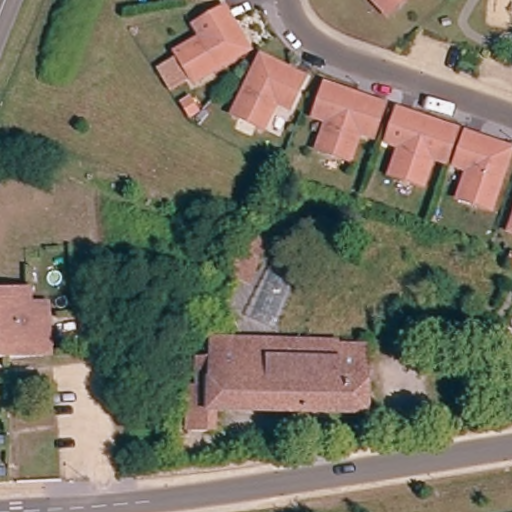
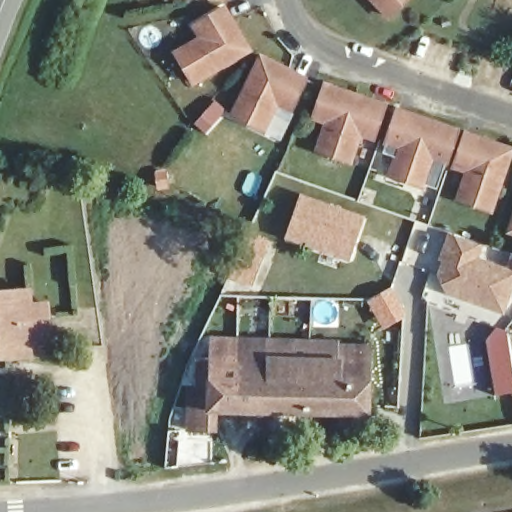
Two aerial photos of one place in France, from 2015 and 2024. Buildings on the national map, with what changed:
unchanged [(218,5),(182,0),(219,0),(218,5)]
unchanged [(383,15),(369,0),(400,0),(383,15)]
unchanged [(188,86),(171,57),(197,42),(188,27),(214,13),(240,57),(188,86)]
unchanged [(303,87),(291,113),(274,108),(260,136),(233,124),(258,67),(303,87)]
unchanged [(370,107),(359,136),(346,136),(338,160),(309,148),(318,123),(304,117),(314,86),(370,107)]
unchanged [(451,130),(440,162),(425,156),(414,182),(386,170),(396,145),(380,140),(392,107),(451,130)]
unchanged [(457,198),(465,171),(452,167),(462,135),(510,152),(490,211),(457,198)]
new [(284,240),(301,195),(366,217),(349,262),(284,240)]
unchanged [(512,226),(512,234),(509,233),(512,226)]
new [(480,257),(507,266),(512,255),(512,292),(505,313),(446,294),(437,274),(442,261),(438,259),(448,231),(484,243),(480,257)]
unchanged [(239,249),(242,243),(258,251),(247,274),(240,288),(223,281),(230,267),(239,249)]
unchanged [(25,293),(28,312),(41,313),(42,324),(44,363),(0,365),(0,294),(25,293)]
new [(507,327),(512,358),(512,393),(495,396),(486,342),(497,327),(507,327)]
demolished [(512,331),(512,369),(493,373),(487,335),(512,331)]
unchanged [(318,360),(218,357),(218,339),(318,343),(318,350),(318,360)]
unchanged [(218,357),(318,360),(318,350),(372,351),(366,418),(211,414),(218,357)]
unchanged [(190,435),(192,414),(211,414),(208,436),(190,435)]

